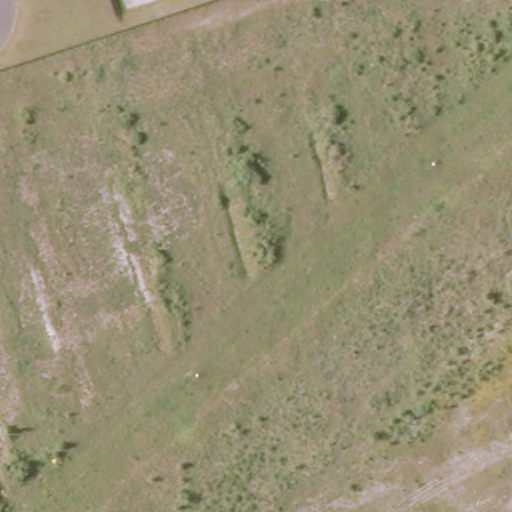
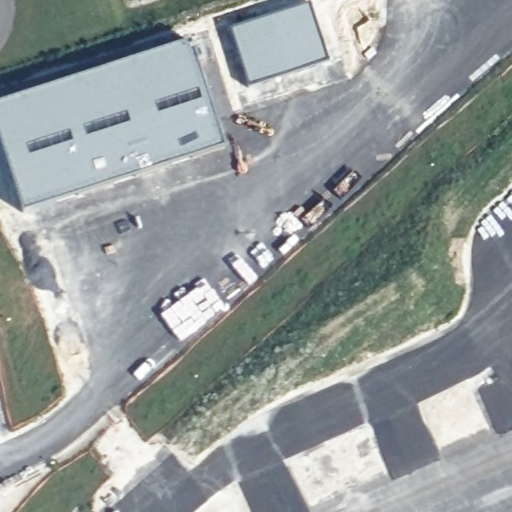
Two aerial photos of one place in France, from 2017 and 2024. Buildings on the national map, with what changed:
new [(329,63),(249,89),(230,30),(309,5),(329,63)]
new [(224,148),(23,213),(0,143),(0,104),(190,44),(224,148)]

